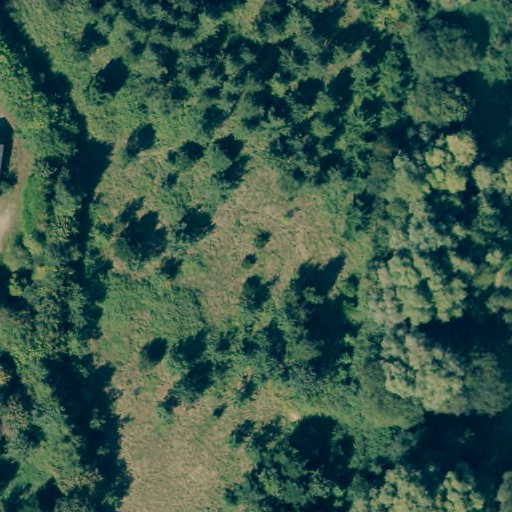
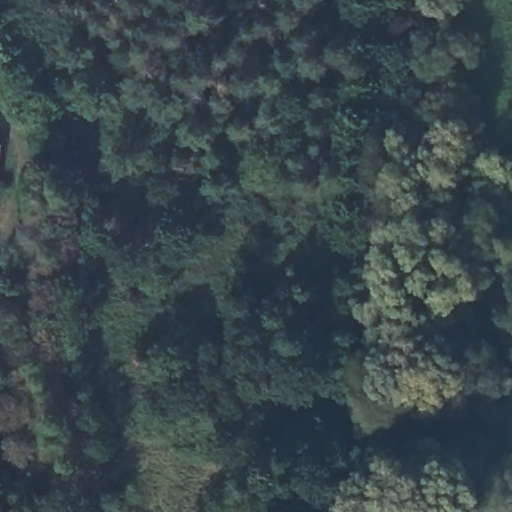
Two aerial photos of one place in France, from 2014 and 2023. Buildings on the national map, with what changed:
unchanged [(0,155),(0,138),(3,138),(0,155)]

